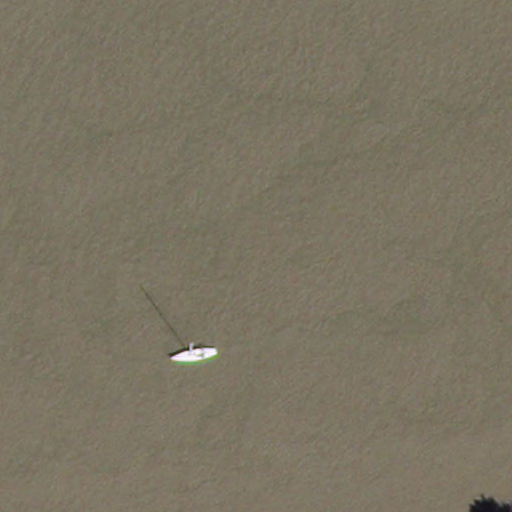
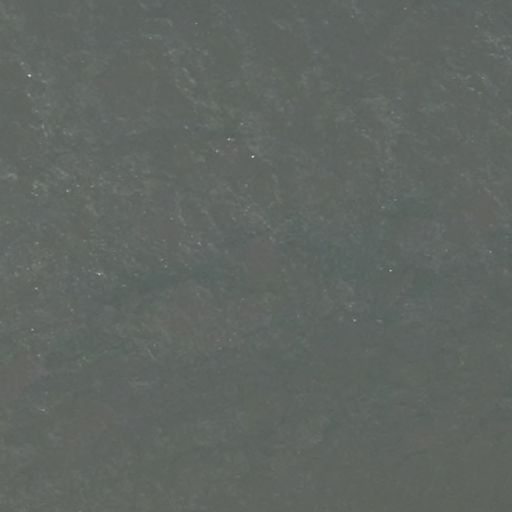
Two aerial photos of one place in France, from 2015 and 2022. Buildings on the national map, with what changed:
[]

